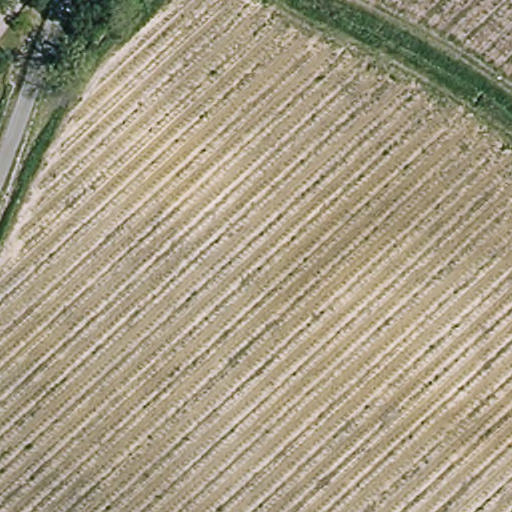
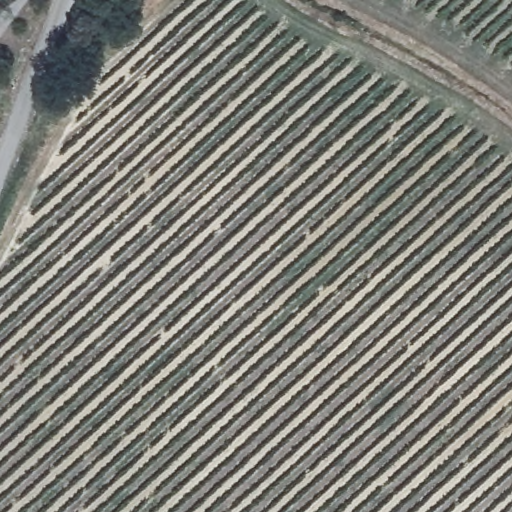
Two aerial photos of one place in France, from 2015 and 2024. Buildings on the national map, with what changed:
[]

